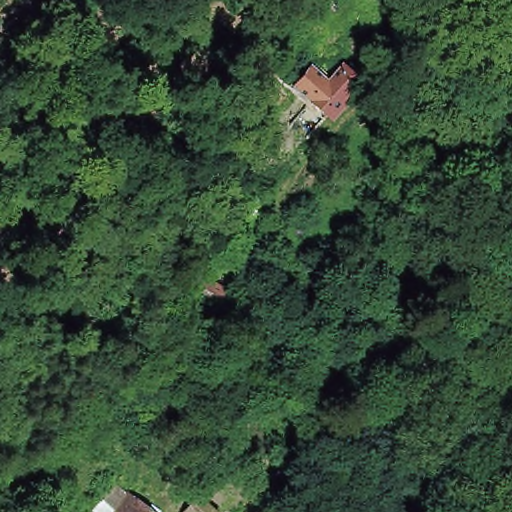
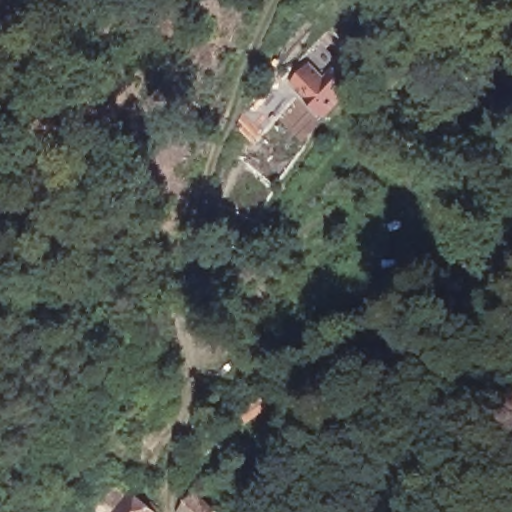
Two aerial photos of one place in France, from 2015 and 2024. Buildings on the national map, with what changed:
unchanged [(309,77),(324,92),(339,75),(354,90),(341,106),(324,125),(291,96),(309,77)]
unchanged [(145,512),(105,512),(119,493),(145,512)]
unchanged [(214,512),(181,512),(193,496),(214,512)]
unchanged [(104,512),(102,512),(103,511),(104,512)]

